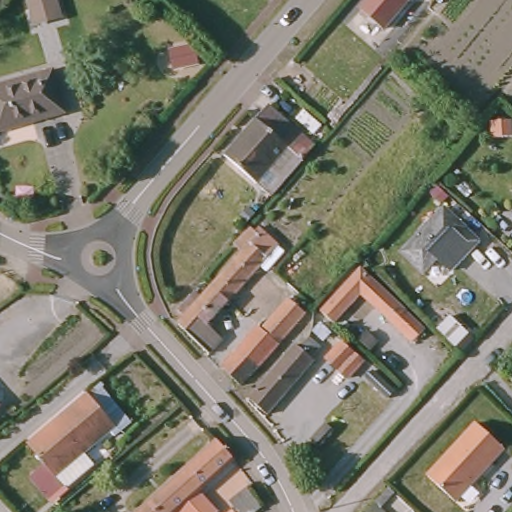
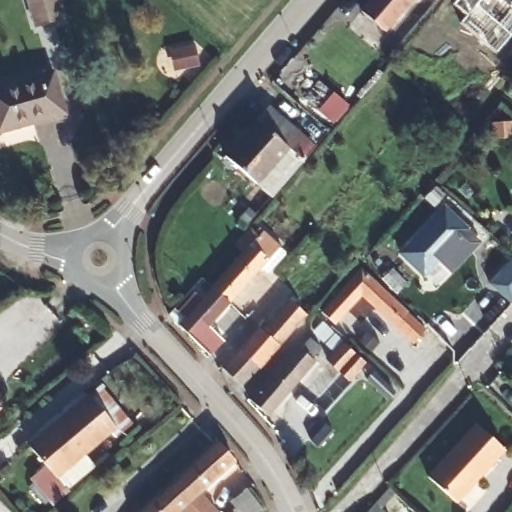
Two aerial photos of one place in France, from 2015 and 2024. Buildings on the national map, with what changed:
unchanged [(371,0),(410,0),(381,34),(358,15),(371,0)]
unchanged [(434,2),(431,0),(436,0),(434,2)]
new [(456,0),(504,0),(512,7),(512,34),(497,52),(461,22),(467,15),(453,4),(456,0)]
unchanged [(52,69),(63,111),(0,129),(0,84),(52,69)]
unchanged [(270,201),(225,160),(268,109),(313,150),(270,201)]
unchanged [(465,227),(423,272),(400,252),(443,207),(465,227)]
unchanged [(243,251),(235,243),(250,226),(255,229),(258,226),(278,243),(273,249),(278,254),(266,267),(261,262),(228,299),(212,285),(243,251)]
new [(465,227),(480,242),(452,273),(436,258),(465,227)]
unchanged [(409,338),(356,292),(329,322),(317,310),(356,267),(421,326),(409,338)]
unchanged [(228,299),(207,323),(222,340),(210,352),(178,323),(188,312),(183,307),(192,297),(197,301),(212,285),(228,299)]
unchanged [(220,365),(257,326),(260,328),(288,298),(307,315),(240,387),(220,365)]
unchanged [(448,325),(465,341),(457,352),(439,335),(448,325)]
unchanged [(324,360),(341,341),(365,362),(350,378),(348,381),(324,360)]
unchanged [(300,352),(308,342),(320,352),(311,362),(315,365),(267,418),(251,403),(297,350),(300,352)]
unchanged [(87,400),(113,431),(55,479),(28,449),(87,400)]
unchanged [(502,449),(492,461),(490,460),(480,470),(482,472),(453,503),(425,478),(475,423),(502,449)]
unchanged [(235,456),(235,457),(219,468),(194,493),(209,512),(195,512),(187,502),(190,498),(172,482),(215,441),(229,457),(235,456)]
unchanged [(190,498),(187,502),(195,512),(176,512),(142,512),(172,482),(190,498)]
unchanged [(396,495),(382,509),(385,512),(366,512),(389,488),(396,495)]
unchanged [(225,505),(242,491),(258,508),(254,512),(228,512),(230,511),(225,505)]

